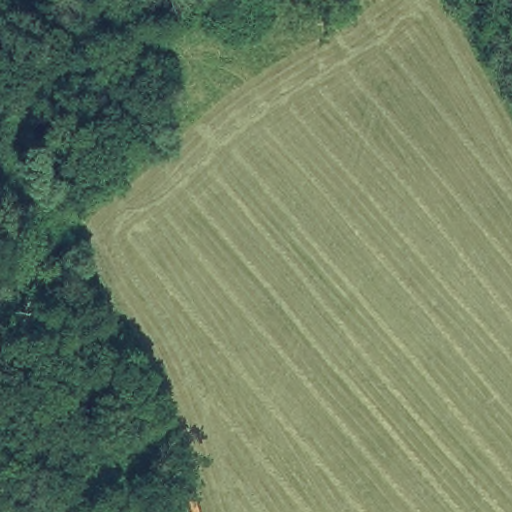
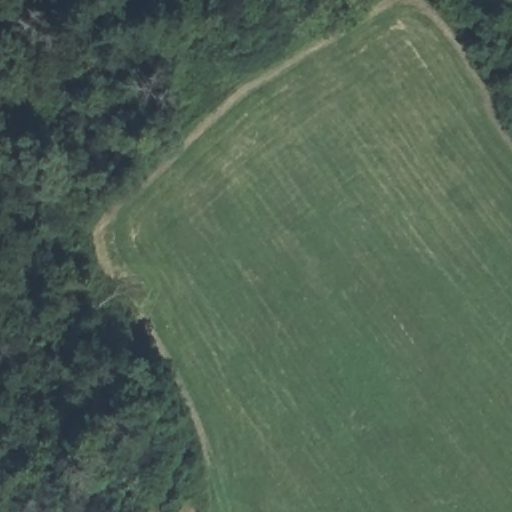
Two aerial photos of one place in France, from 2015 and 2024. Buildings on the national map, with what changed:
[]

